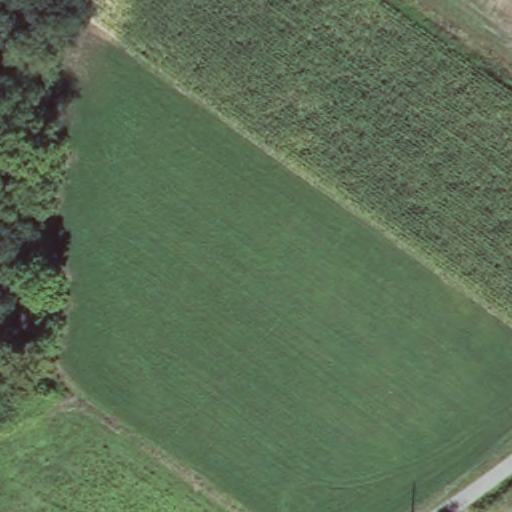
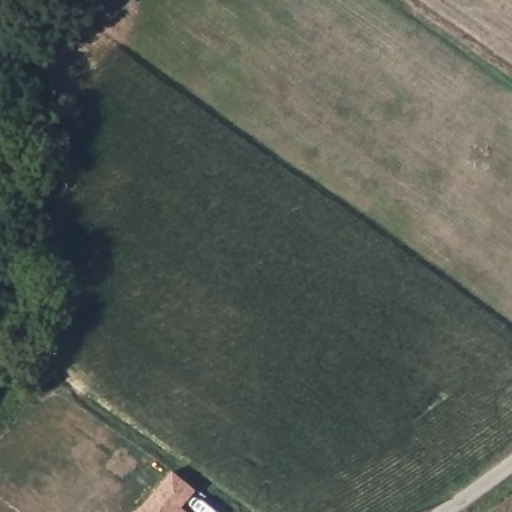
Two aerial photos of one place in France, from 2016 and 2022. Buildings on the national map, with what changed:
new [(192,489),(181,507),(187,512),(134,512),(171,470),(192,489)]

